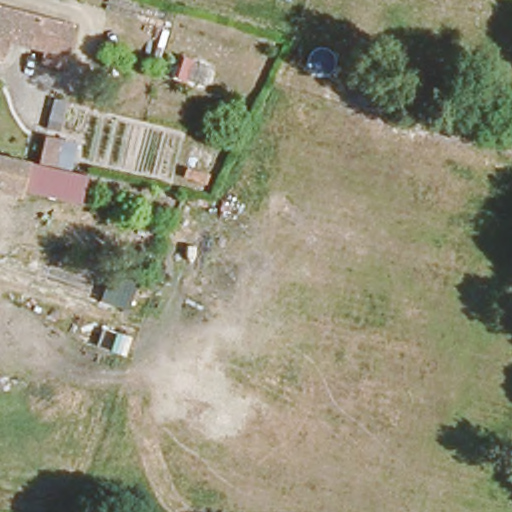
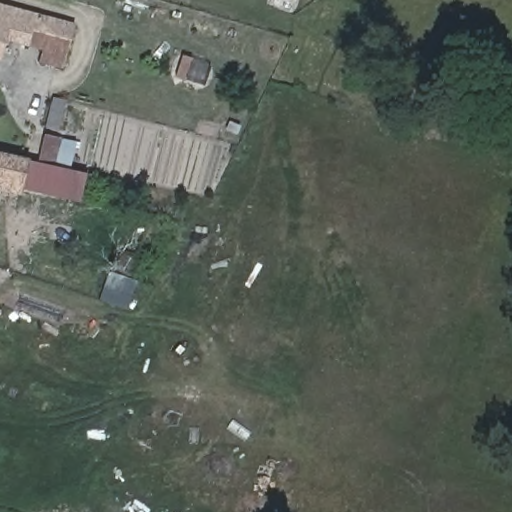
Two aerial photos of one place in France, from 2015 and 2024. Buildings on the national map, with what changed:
unchanged [(25,40),(0,33),(0,0),(3,0),(74,19),(62,61),(31,54),(21,51),(25,40)]
unchanged [(36,161),(41,132),(75,139),(67,169),(51,165),(46,183),(21,178),(26,159),(36,161)]
unchanged [(26,159),(21,178),(17,196),(0,192),(0,153),(26,159)]
unchanged [(46,183),(51,165),(67,169),(87,173),(80,202),(19,188),(21,178),(46,183)]
unchanged [(132,348),(114,345),(111,353),(82,344),(88,320),(135,333),(132,348)]

